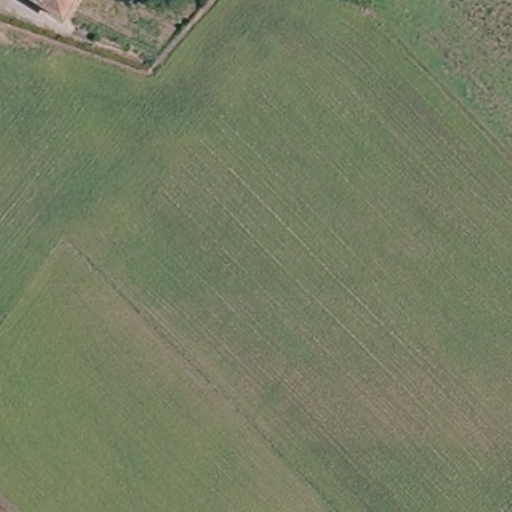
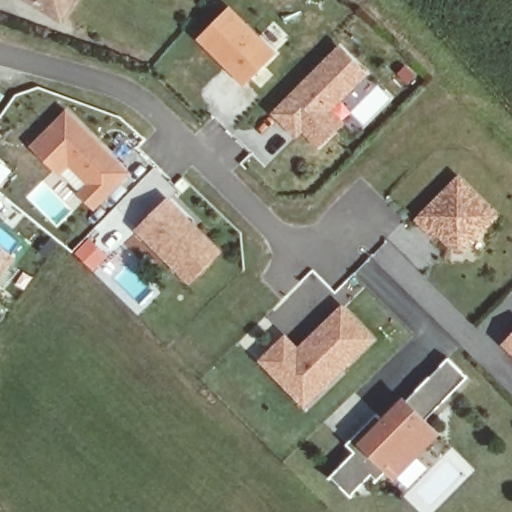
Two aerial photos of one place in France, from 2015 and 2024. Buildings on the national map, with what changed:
unchanged [(32,0),(73,0),(60,19),(32,0)]
new [(278,55),(244,88),(196,41),(231,6),(278,55)]
new [(370,73),(333,111),(347,124),(320,149),(302,133),(296,139),(269,115),(340,45),(370,73)]
new [(66,113),(128,173),(96,207),(82,193),(91,184),(69,163),(60,173),(33,147),(66,113)]
new [(500,217),(469,249),(449,247),(438,236),(433,242),(413,221),(459,175),(500,217)]
new [(167,201),(218,252),(189,281),(138,230),(167,201)]
new [(17,257),(0,279),(0,243),(17,257)]
new [(298,347),(342,304),(376,341),(304,409),(257,361),(286,335),(298,347)]
new [(512,351),(509,349),(512,346),(512,351)]
new [(376,414),(384,422),(405,401),(419,388),(448,358),(468,378),(438,408),(425,421),(437,434),(417,454),(395,476),(388,469),(377,481),(371,475),(349,496),(330,477),(354,452),(346,444),(376,414)]

